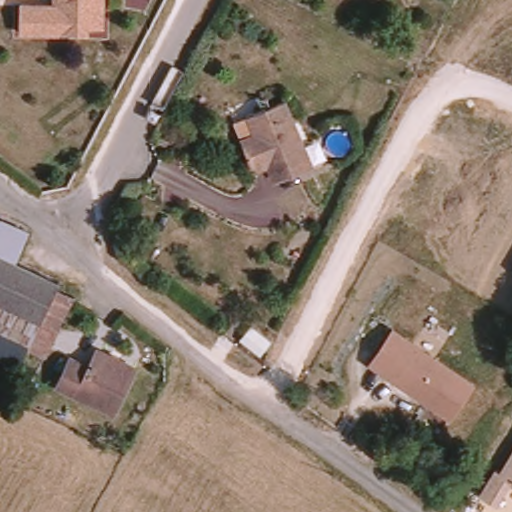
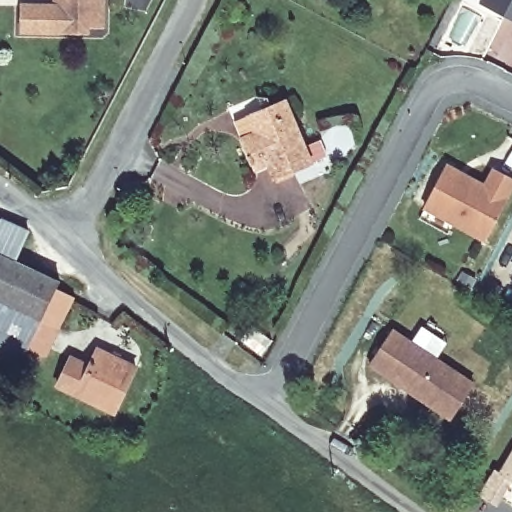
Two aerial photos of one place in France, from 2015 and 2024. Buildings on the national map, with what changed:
unchanged [(85,29),(84,35),(15,33),(16,5),(59,6),(59,0),(102,0),(100,28),(85,29)]
new [(480,0),(512,0),(512,19),(479,2),(480,0)]
unchanged [(254,136),(246,120),(288,103),(313,170),(273,186),(267,172),(252,177),(246,156),(240,141),(254,136)]
new [(445,166),(483,186),(491,170),(512,180),(512,183),(483,240),(423,210),(443,171),(445,166)]
unchanged [(18,258),(61,281),(24,365),(0,354),(0,215),(30,230),(18,258)]
unchanged [(253,341),(245,351),(227,337),(235,327),(253,341)]
unchanged [(474,384),(452,418),(370,365),(392,331),(474,384)]
unchanged [(132,372),(111,415),(57,391),(70,363),(89,370),(97,354),(132,372)]
unchanged [(511,479),(497,503),(480,491),(495,465),(500,469),(512,449),(512,479),(511,479)]

